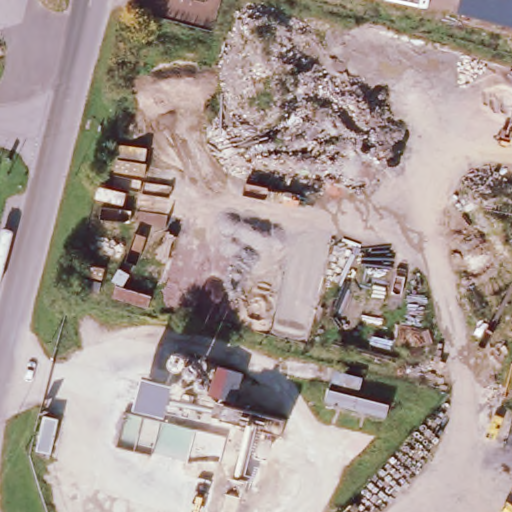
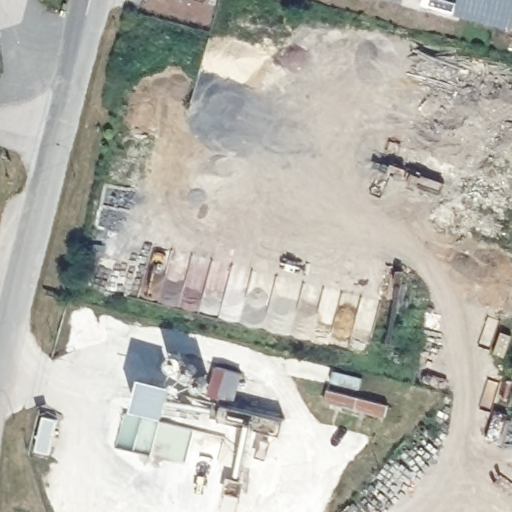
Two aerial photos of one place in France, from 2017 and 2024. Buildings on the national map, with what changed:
unchanged [(512,0),(512,22),(456,10),(458,0),(512,0)]
unchanged [(224,372),(239,376),(235,404),(287,416),(282,436),(208,423),(224,372)]
unchanged [(140,377),(172,385),(164,416),(132,407),(140,377)]

